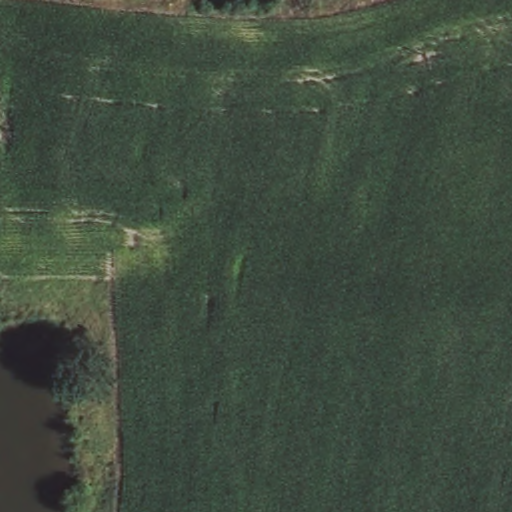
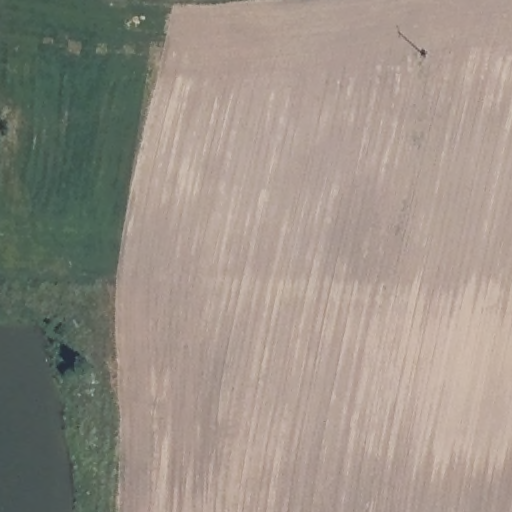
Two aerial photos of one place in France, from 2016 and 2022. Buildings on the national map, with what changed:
[]

